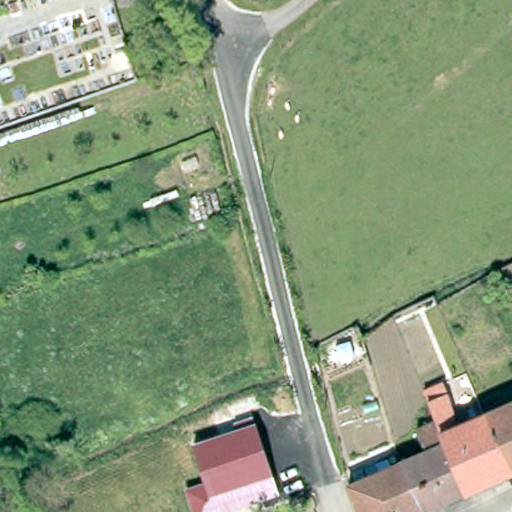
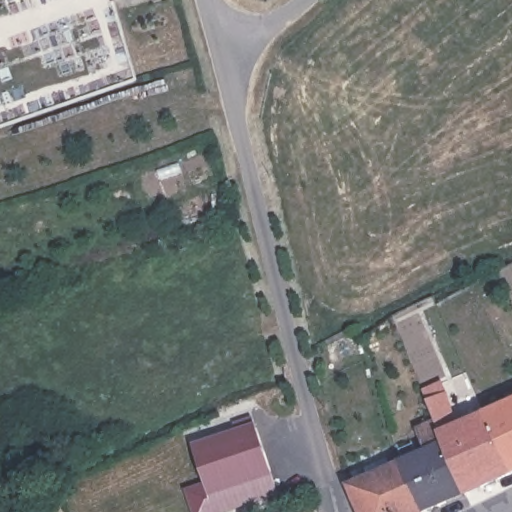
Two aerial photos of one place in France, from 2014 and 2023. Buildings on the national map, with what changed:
unchanged [(457,407),(462,427),(489,415),(512,464),(512,475),(470,494),(438,416),(426,389),(446,381),(457,407)]
unchanged [(512,405),(512,464),(489,415),(512,405)]
unchanged [(432,512),(427,512),(406,463),(437,451),(428,438),(425,429),(430,427),(428,421),(438,416),(470,494),(432,512)]
unchanged [(191,489),(210,483),(199,446),(196,436),(210,431),(213,429),(238,421),(239,424),(257,418),(281,492),(222,512),(199,512),(191,489)]
unchanged [(354,485),(406,463),(427,512),(364,512),(354,485)]

